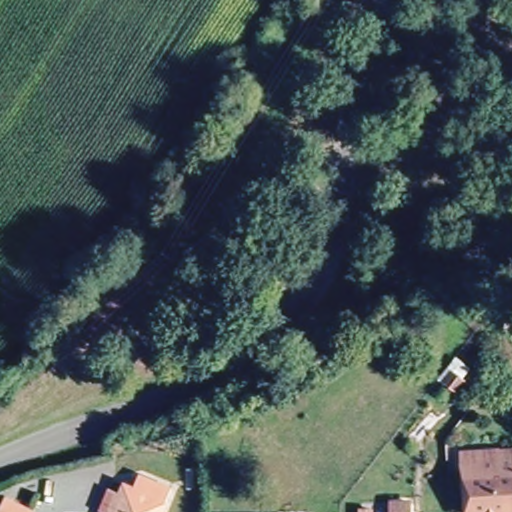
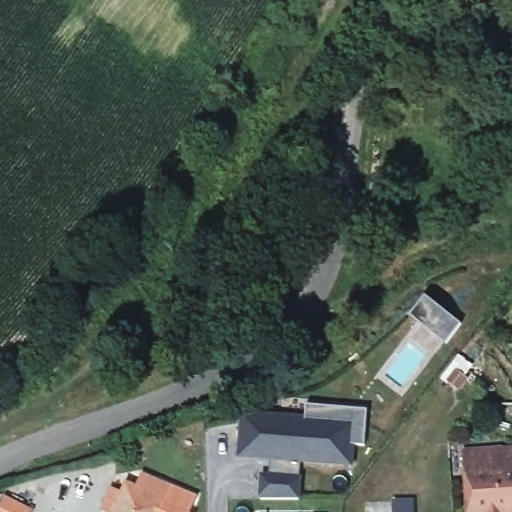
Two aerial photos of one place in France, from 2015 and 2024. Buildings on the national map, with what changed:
new [(426,299),(464,328),(448,349),(410,320),(426,299)]
new [(272,462),(239,460),(242,415),(282,417),(282,419),(307,420),(308,405),(371,408),(369,446),(355,446),(354,466),(331,465),(303,463),(302,481),(301,503),(262,503),(264,479),(270,479),(272,462)]
unchanged [(505,476),(512,475),(512,512),(471,512),(464,456),(502,451),(505,476)]
unchanged [(105,512),(99,510),(107,489),(119,493),(123,484),(133,487),(138,473),(172,486),(163,512),(105,512)]
unchanged [(33,507),(31,512),(0,512),(0,498),(2,494),(33,507)]

